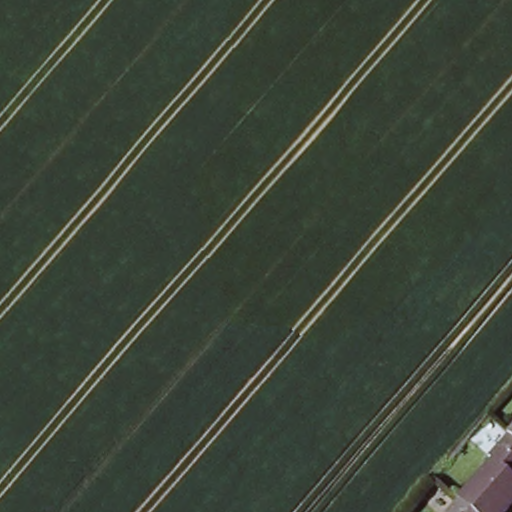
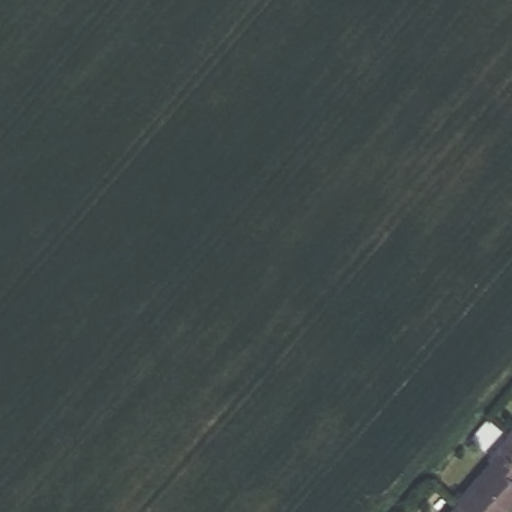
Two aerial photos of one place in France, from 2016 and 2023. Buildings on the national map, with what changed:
unchanged [(512,432),(512,436),(510,434),(512,432)]
unchanged [(458,500),(454,496),(510,434),(512,436),(512,499),(501,512),(471,512),(458,500)]
unchanged [(458,500),(471,512),(447,512),(458,500)]

